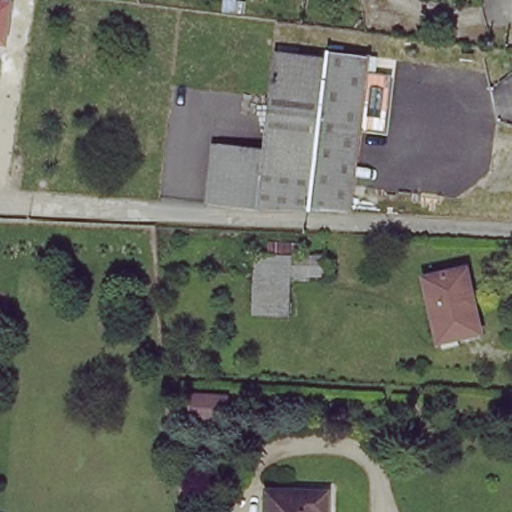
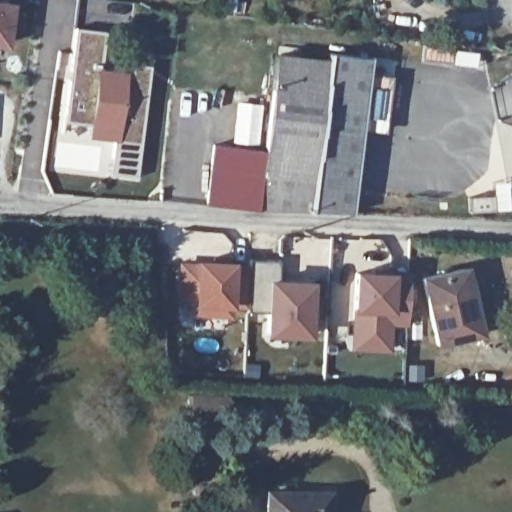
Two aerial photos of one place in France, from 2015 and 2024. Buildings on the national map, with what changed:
unchanged [(13,0),(6,48),(0,47),(0,0),(9,0),(13,0)]
new [(106,31),(98,72),(131,77),(133,64),(152,65),(136,181),(117,180),(118,166),(111,165),(115,130),(63,124),(75,27),(106,31)]
unchanged [(272,60),(325,66),(326,58),(366,62),(349,215),(257,209),(263,146),(272,60)]
unchanged [(211,206),(220,142),(263,146),(257,209),(211,206)]
demolished [(254,315),(257,254),(327,256),(326,278),(290,275),(288,316),(254,315)]
new [(246,270),(244,314),(229,315),(229,323),(191,323),(190,305),(185,305),(184,296),(175,296),(176,268),(246,270)]
unchanged [(468,268),(481,335),(436,342),(423,277),(468,268)]
new [(386,285),(386,276),(405,277),(404,329),(386,329),(386,357),(349,355),(349,283),(386,285)]
new [(312,290),(313,319),(305,318),(305,349),(262,348),(262,290),(312,290)]
unchanged [(325,512),(267,512),(268,493),(325,495),(325,512)]

